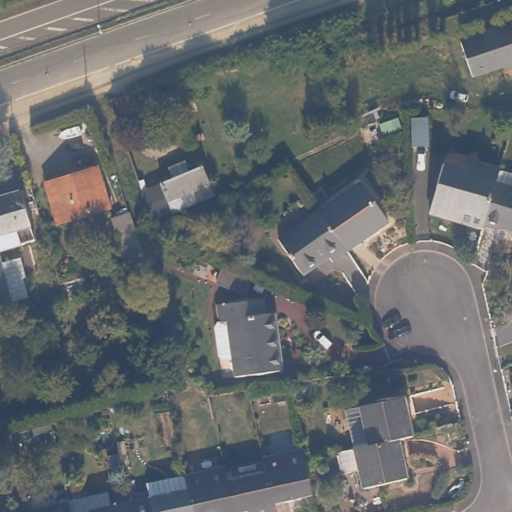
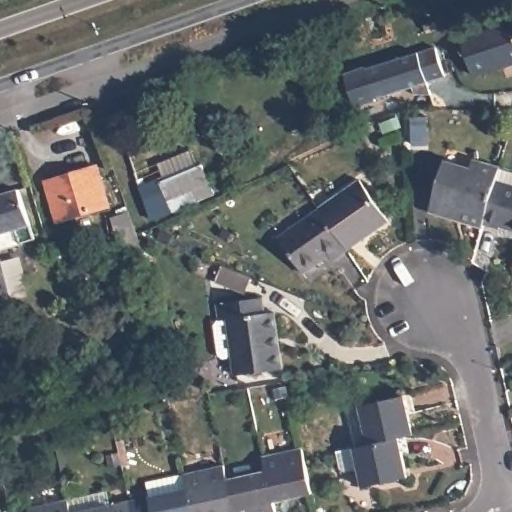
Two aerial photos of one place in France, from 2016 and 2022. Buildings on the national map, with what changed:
unchanged [(505,66),(474,79),(462,40),(512,22),(512,67),(507,69),(505,66)]
new [(436,46),(445,76),(428,82),(426,82),(432,95),(413,95),(411,89),(376,100),(353,107),(342,74),(366,66),(367,68),(420,51),(436,46)]
unchanged [(199,163),(214,160),(224,194),(179,206),(168,172),(182,169),(179,159),(195,153),(199,163)]
unchanged [(483,226),(441,216),(448,191),(437,188),(443,163),(470,171),(472,160),(500,169),(484,222),(483,226)]
unchanged [(112,207),(64,222),(51,184),(100,169),(112,207)]
unchanged [(500,169),(512,173),(512,224),(502,221),(500,226),(484,222),(500,169)]
unchanged [(179,206),(150,215),(141,180),(168,172),(179,206)]
unchanged [(321,207),(358,178),(388,219),(351,247),(321,207)]
unchanged [(0,249),(0,196),(19,190),(35,237),(0,249)]
unchanged [(334,260),(330,255),(305,275),(278,239),(321,207),(351,247),(334,260)]
unchanged [(134,239),(140,255),(120,261),(106,220),(125,214),(134,239)]
unchanged [(0,304),(0,249),(15,300),(0,304)]
unchanged [(271,314),(282,315),(287,368),(240,371),(236,318),(226,318),(226,300),(271,297),(271,314)]
unchanged [(365,446),(356,406),(411,394),(421,433),(410,436),(365,446)]
unchanged [(417,473),(373,485),(368,465),(351,470),(347,450),(365,446),(410,436),(417,473)]
unchanged [(267,474),(264,459),(302,450),(305,463),(312,495),(275,505),(267,474)]
unchanged [(224,468),(227,484),(234,512),(192,512),(188,493),(185,477),(224,468)]
unchanged [(275,505),(276,512),(234,512),(227,484),(267,474),(275,505)]
unchanged [(151,512),(148,502),(188,493),(192,512),(151,512)]
unchanged [(108,512),(68,512),(66,505),(104,497),(108,512)]
unchanged [(68,512),(37,512),(66,505),(68,512)]
unchanged [(131,512),(112,512),(130,507),(131,512)]

